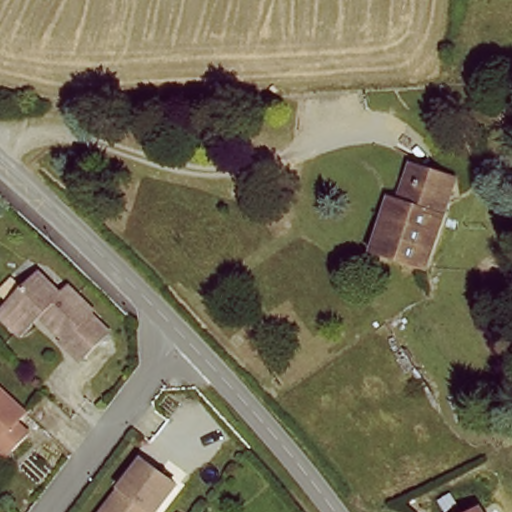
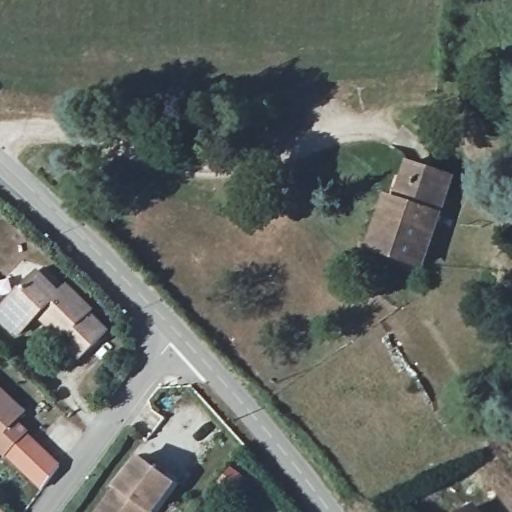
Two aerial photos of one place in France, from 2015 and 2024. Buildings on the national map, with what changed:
unchanged [(422,164),(441,171),(461,180),(422,268),(374,245),(382,225),(390,206),(400,209),(415,179),(422,164)]
unchanged [(21,332),(9,320),(0,312),(0,310),(9,301),(39,270),(61,292),(68,285),(92,308),(90,311),(108,330),(79,358),(61,340),(66,335),(42,311),(40,313),(31,322),(21,332)]
unchanged [(27,410),(18,420),(29,431),(7,455),(0,448),(0,386),(27,410)]
new [(29,431),(60,465),(42,489),(7,455),(29,431)]
unchanged [(138,458),(172,483),(151,512),(97,512),(138,458)]
unchanged [(473,502),(479,512),(452,512),(473,502)]
new [(8,512),(0,512),(0,506),(8,512)]

